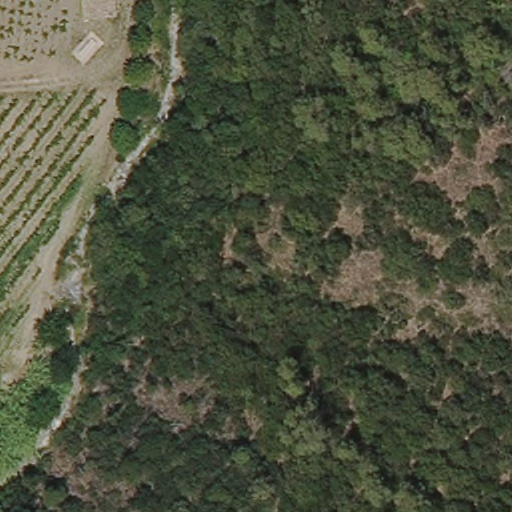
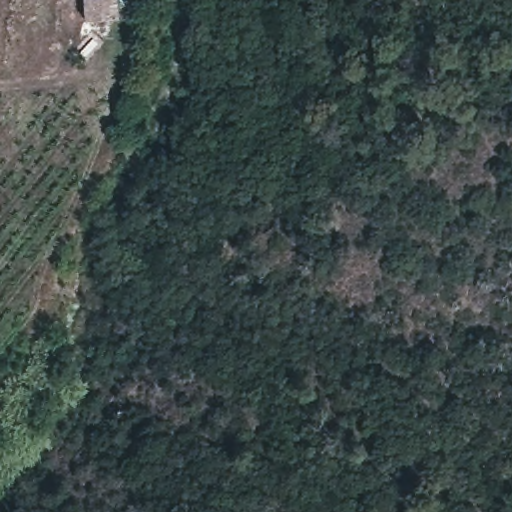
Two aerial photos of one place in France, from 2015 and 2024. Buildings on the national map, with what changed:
unchanged [(117,0),(117,17),(87,17),(87,0),(117,0)]

